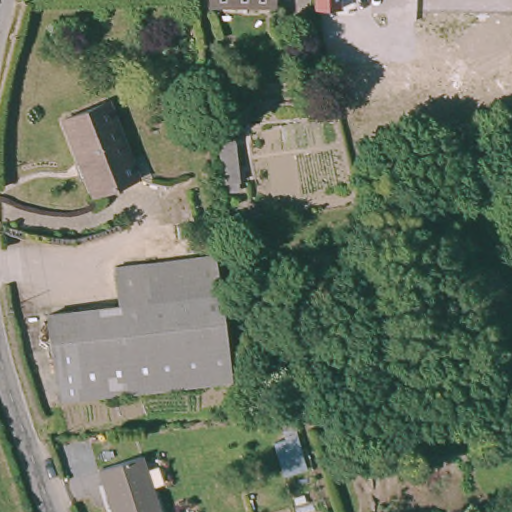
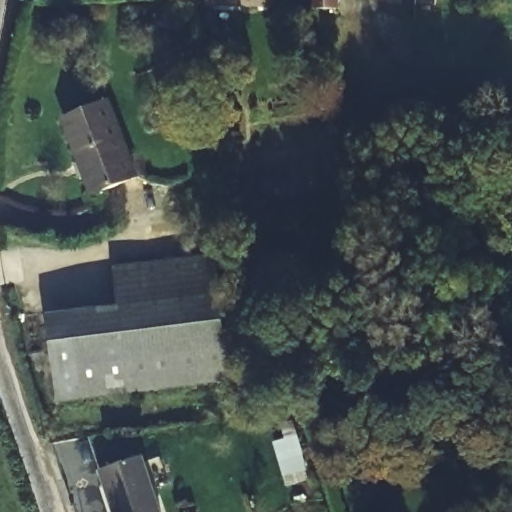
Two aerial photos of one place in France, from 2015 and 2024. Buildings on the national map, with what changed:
unchanged [(210,0),(273,0),(273,4),(209,3),(210,0)]
unchanged [(339,8),(315,8),(315,4),(315,0),(339,0),(339,8)]
unchanged [(137,181),(94,198),(86,180),(81,182),(75,167),(80,165),(63,122),(108,105),(137,181)]
unchanged [(234,131),(239,180),(223,181),(218,133),(234,131)]
unchanged [(116,271),(214,259),(219,297),(121,309),(116,271)]
unchanged [(219,297),(231,384),(58,405),(48,319),(121,309),(219,297)]
unchanged [(293,419),(297,435),(286,438),(283,422),(293,419)]
unchanged [(114,512),(100,468),(141,454),(160,512),(114,512)]

